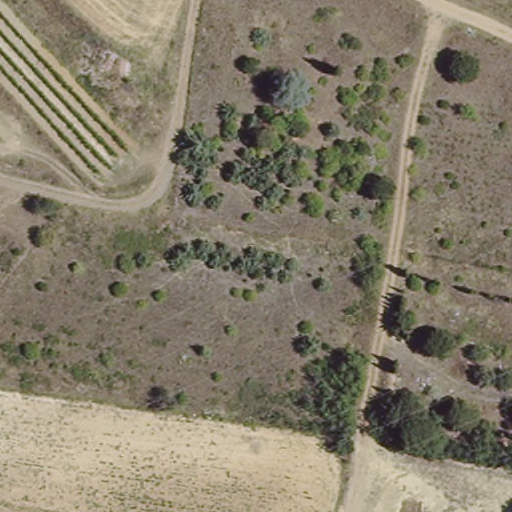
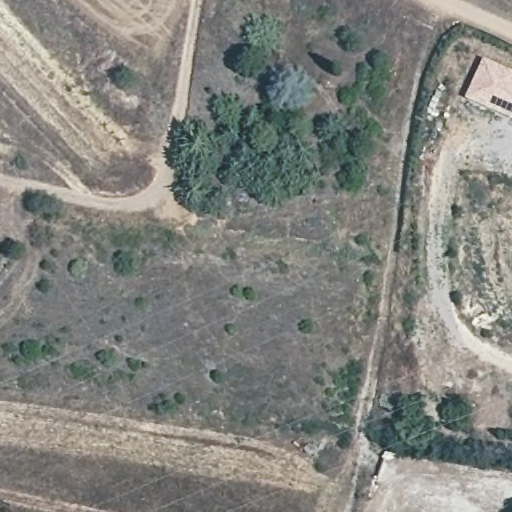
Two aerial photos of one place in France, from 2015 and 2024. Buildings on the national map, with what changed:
new [(512,71),(512,120),(464,97),(484,58),(512,71)]

